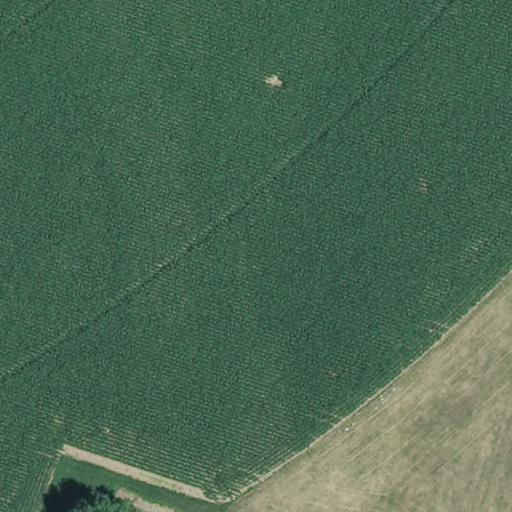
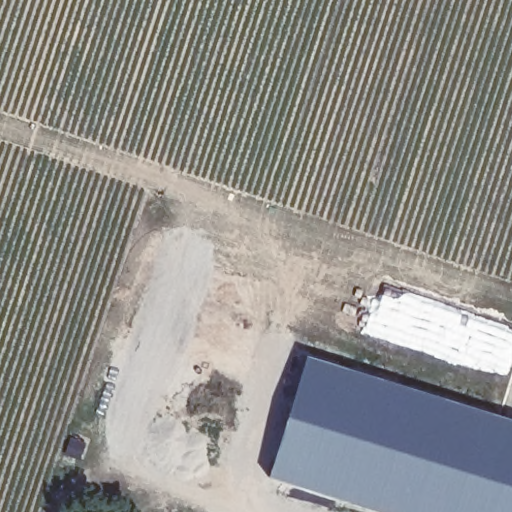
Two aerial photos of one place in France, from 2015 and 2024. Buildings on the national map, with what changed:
new [(512,418),(512,512),(362,512),(267,482),(306,352),(512,418)]

